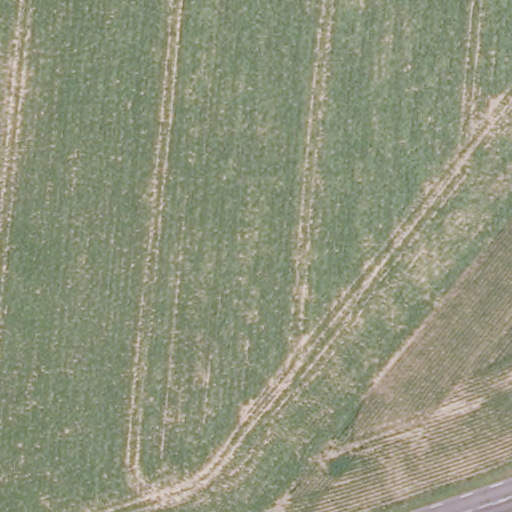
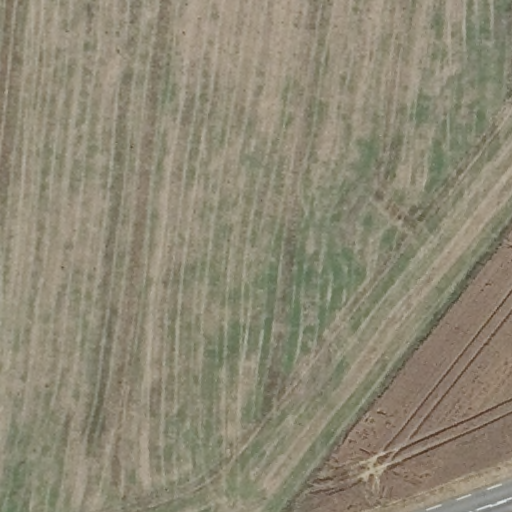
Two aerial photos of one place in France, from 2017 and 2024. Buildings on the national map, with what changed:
[]

